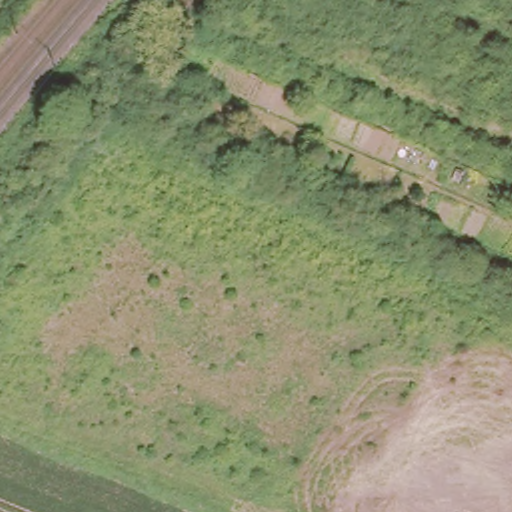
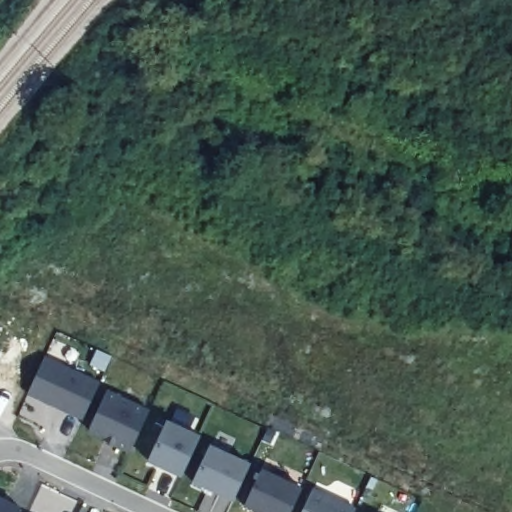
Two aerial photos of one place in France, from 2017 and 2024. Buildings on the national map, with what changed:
new [(99,381),(83,417),(28,391),(45,356),(99,381)]
new [(130,451),(106,440),(108,438),(90,429),(108,390),(149,410),(130,451)]
new [(201,435),(182,475),(149,460),(167,420),(201,435)]
new [(250,463),(233,499),(193,481),(211,444),(250,463)]
new [(303,487),(291,512),(262,512),(245,504),(263,468),(303,487)]
new [(356,507),(354,512),(301,512),(312,488),(356,507)]
new [(19,512),(0,512),(0,497),(21,507),(19,512)]

